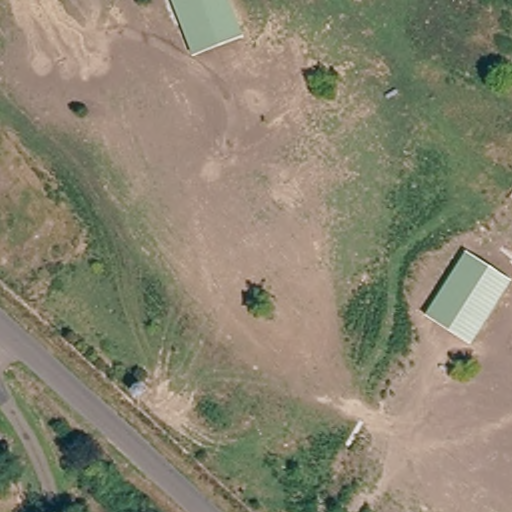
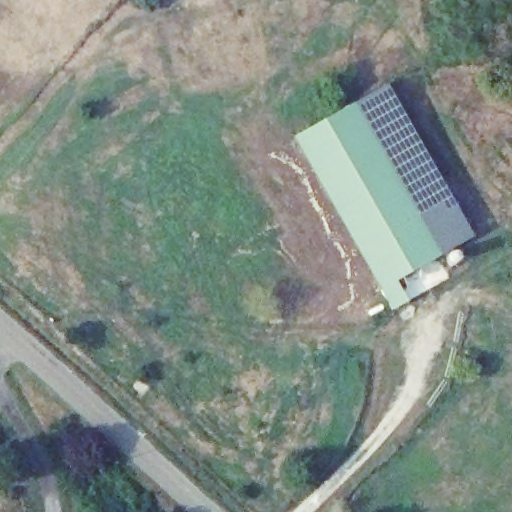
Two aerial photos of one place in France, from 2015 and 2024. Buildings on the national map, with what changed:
new [(434,257),(349,105),(386,85),(473,237),(434,257)]
new [(349,105),(434,257),(391,281),(405,306),(390,313),(376,288),(380,287),(295,134),(349,105)]

